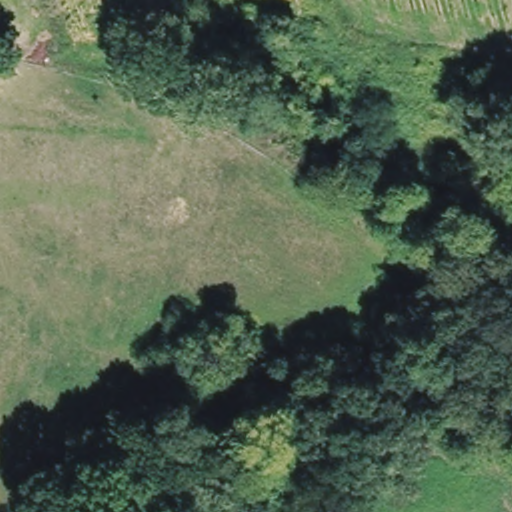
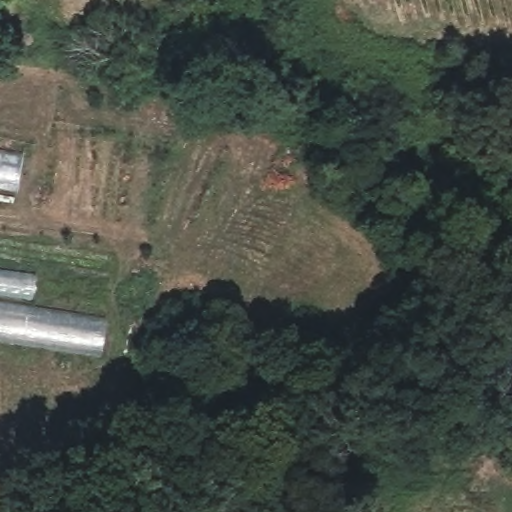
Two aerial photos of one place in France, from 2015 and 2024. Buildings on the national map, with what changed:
new [(107,318),(102,355),(0,341),(0,302),(107,318)]

